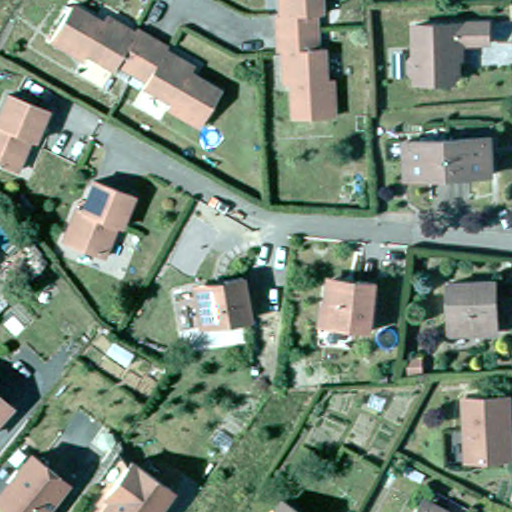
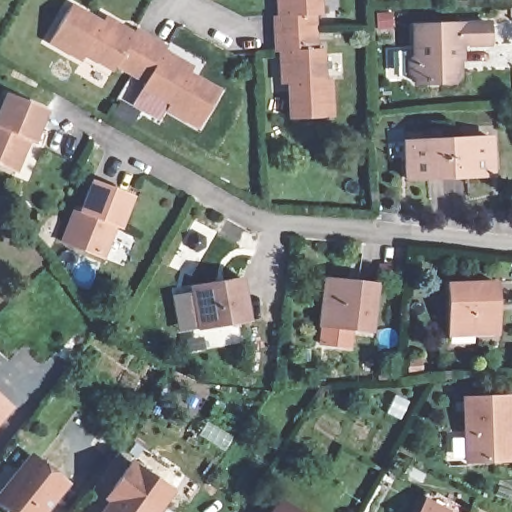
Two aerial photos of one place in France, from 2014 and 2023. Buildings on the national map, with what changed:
unchanged [(312,10),(313,45),(319,45),(319,78),(327,77),(328,115),(289,116),(287,80),(280,80),(279,48),(274,48),(271,12),(276,12),(275,0),(317,0),(317,10),(312,10)]
unchanged [(190,127),(158,110),(161,104),(134,87),(137,84),(108,66),(105,70),(78,55),(75,60),(42,42),(63,7),(93,25),(97,19),(124,35),(127,30),(158,49),(156,54),(183,70),(179,76),(211,94),(190,127)]
unchanged [(409,81),(409,75),(404,70),(404,58),(408,53),(408,23),(483,20),(483,41),(454,42),(447,51),(448,57),(452,56),(453,75),(447,80),(409,81)]
unchanged [(25,137),(13,168),(0,163),(0,96),(1,92),(43,107),(30,139),(25,137)]
unchanged [(474,132),(475,150),(476,170),(417,172),(416,151),(414,135),(420,134),(469,132),(474,132)]
unchanged [(120,224),(116,222),(101,255),(62,236),(75,205),(80,207),(93,178),(132,194),(120,224)]
unchanged [(314,320),(317,278),(326,279),(327,272),(351,274),(370,275),(364,325),(314,320)]
unchanged [(198,326),(192,291),(191,285),(221,280),(238,277),(246,318),(198,326)]
unchanged [(484,333),(448,334),(447,283),(489,282),(489,300),(489,333),(484,333)]
unchanged [(502,458),(461,460),(458,397),(504,395),(506,427),(507,458),(502,458)]
unchanged [(0,409),(0,399),(5,403),(0,409)]
unchanged [(166,489),(150,512),(97,512),(106,499),(102,495),(109,485),(126,460),(166,489)]
unchanged [(64,490),(47,512),(0,512),(0,504),(18,481),(16,480),(30,462),(52,480),(64,490)]
unchanged [(423,497),(447,512),(415,512),(423,497)]
unchanged [(273,510),(279,500),(296,512),(271,512),(273,510)]

